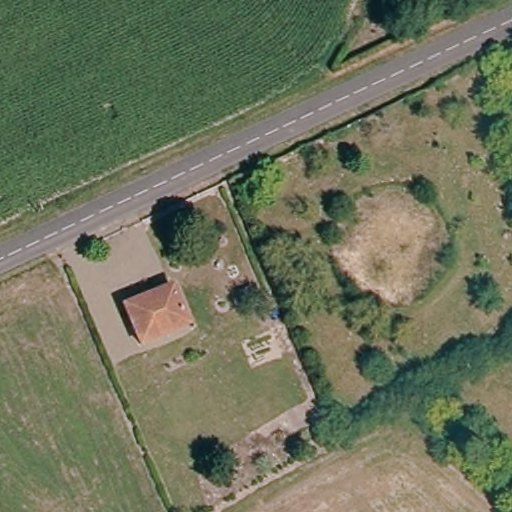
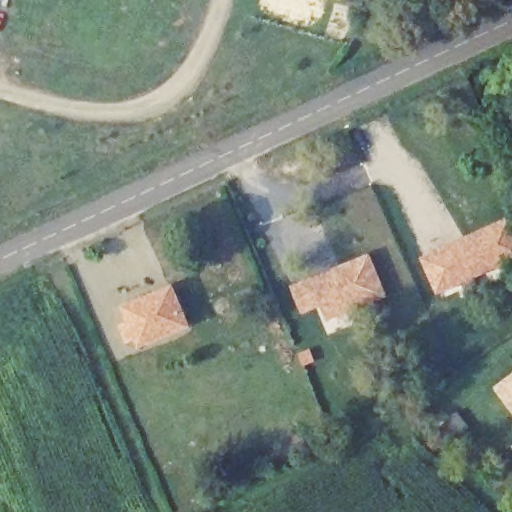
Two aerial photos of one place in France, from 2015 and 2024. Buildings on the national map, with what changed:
new [(446,240),(512,214),(512,265),(437,296),(418,254),(446,240)]
new [(329,321),(322,306),(302,314),(292,286),(369,253),(388,297),(329,321)]
unchanged [(147,342),(130,304),(177,285),(194,322),(147,342)]
new [(512,375),(512,413),(494,388),(512,375)]

